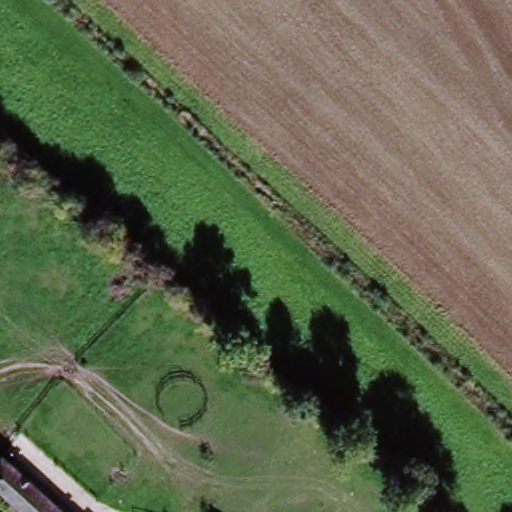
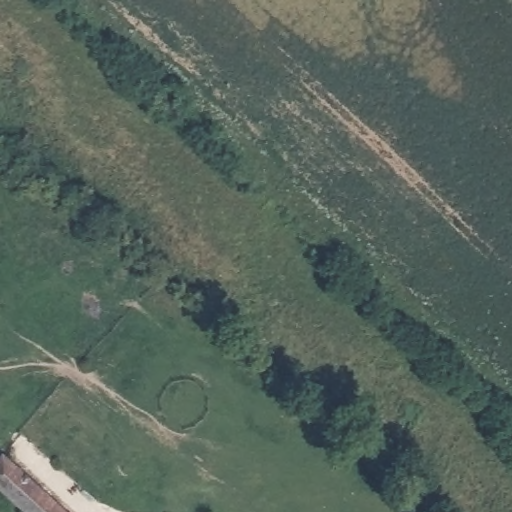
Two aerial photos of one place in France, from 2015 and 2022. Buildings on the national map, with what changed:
unchanged [(0,496),(0,457),(2,455),(64,512),(18,512),(0,496)]

